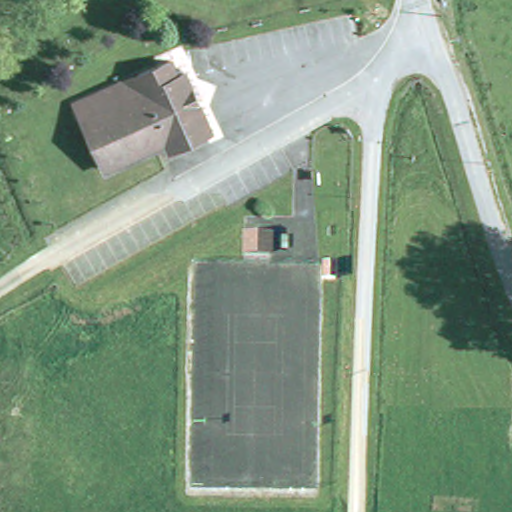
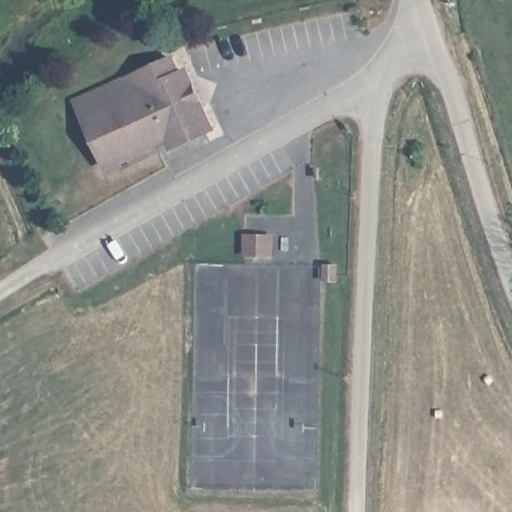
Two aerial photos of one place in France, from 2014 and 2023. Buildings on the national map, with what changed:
unchanged [(168,152),(159,138),(97,169),(66,94),(170,52),(173,67),(182,65),(208,130),(168,152)]
unchanged [(260,240),(259,260),(234,258),(235,240),(260,240)]
unchanged [(336,266),(335,281),(324,280),(325,266),(336,266)]

